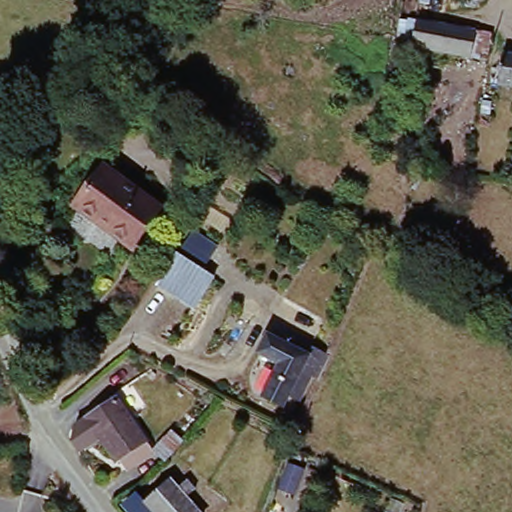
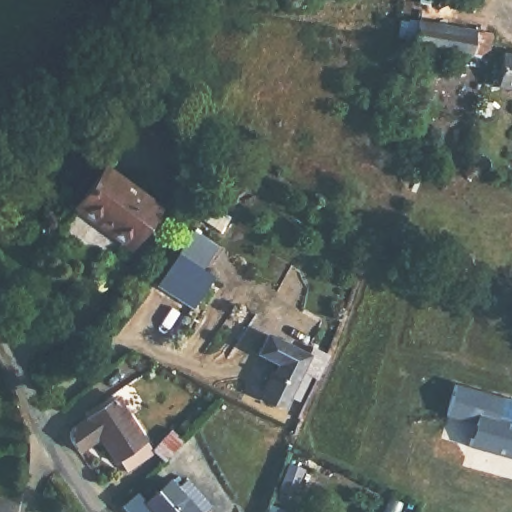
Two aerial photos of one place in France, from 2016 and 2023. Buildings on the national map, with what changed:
unchanged [(425,18),(483,28),(478,53),(424,46),(425,18)]
unchanged [(503,49),(512,50),(512,87),(496,85),(503,49)]
unchanged [(111,161),(168,207),(135,246),(77,196),(111,161)]
unchanged [(184,254),(216,276),(191,306),(161,282),(184,254)]
unchanged [(261,385),(266,385),(277,363),(256,351),(267,334),(287,343),(306,353),(310,343),(328,352),(323,362),(316,359),(295,400),(286,396),(281,407),(260,397),(254,395),(261,385)]
new [(452,382),(512,398),(512,456),(466,444),(472,421),(443,413),(452,382)]
unchanged [(156,450),(152,452),(130,470),(121,459),(117,461),(78,409),(107,387),(147,438),(171,422),(179,434),(161,457),(156,450)]
unchanged [(171,474),(208,512),(150,512),(140,503),(171,474)]

